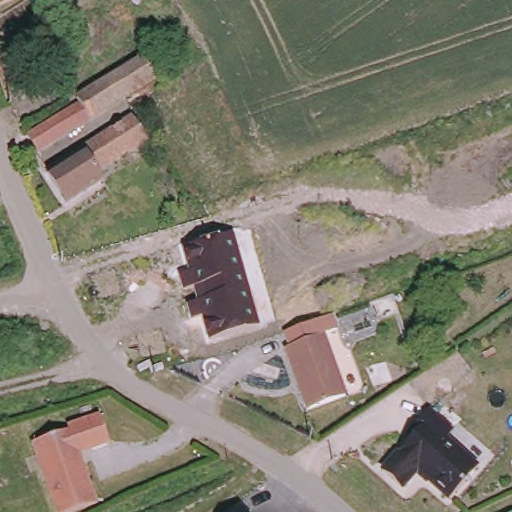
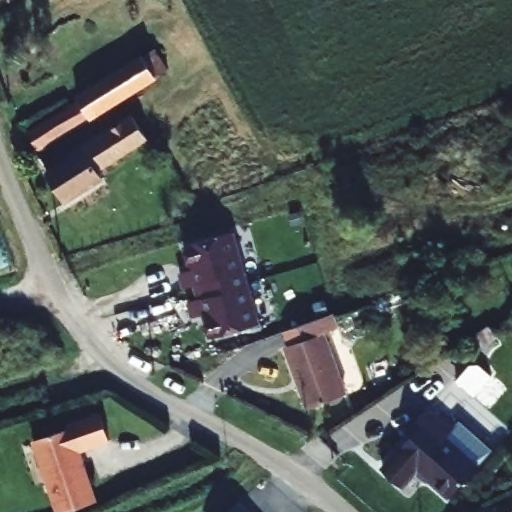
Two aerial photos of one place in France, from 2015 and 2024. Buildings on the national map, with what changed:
unchanged [(0,5),(0,0),(23,0),(1,7),(0,5)]
unchanged [(152,49),(166,70),(153,78),(121,99),(34,154),(31,150),(35,147),(26,133),(79,101),(77,97),(140,57),(152,49)]
unchanged [(146,136),(97,170),(102,178),(66,203),(46,172),(132,116),(146,136)]
unchanged [(257,323),(209,336),(202,313),(190,316),(176,270),(187,266),(182,243),(232,229),(257,323)]
unchanged [(280,348),(318,336),(340,398),(301,410),(280,348)]
unchanged [(407,472),(393,489),(372,471),(399,437),(394,433),(413,410),(440,431),(435,438),(467,465),(441,498),(407,472)]
unchanged [(87,452),(97,501),(73,512),(60,512),(33,439),(101,414),(112,443),(87,452)]
unchanged [(232,512),(242,502),(251,512),(232,512)]

